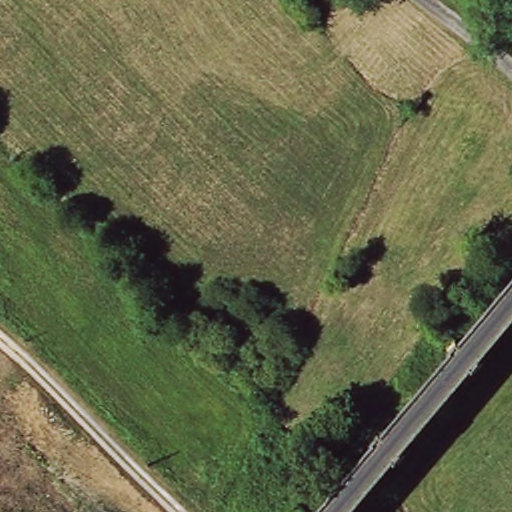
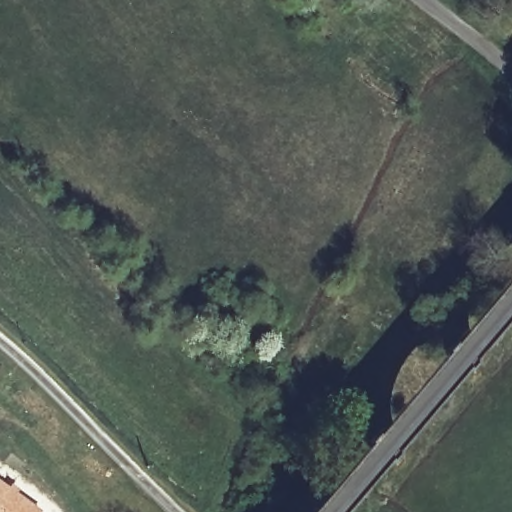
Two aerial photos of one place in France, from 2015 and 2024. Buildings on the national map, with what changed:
new [(8,483),(41,511),(41,512),(0,512),(0,481),(6,485),(8,483)]

